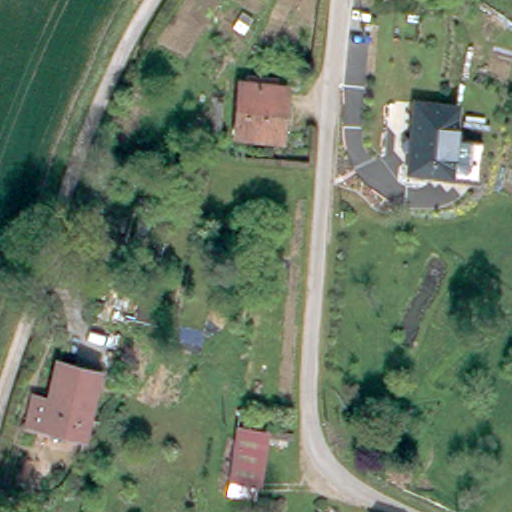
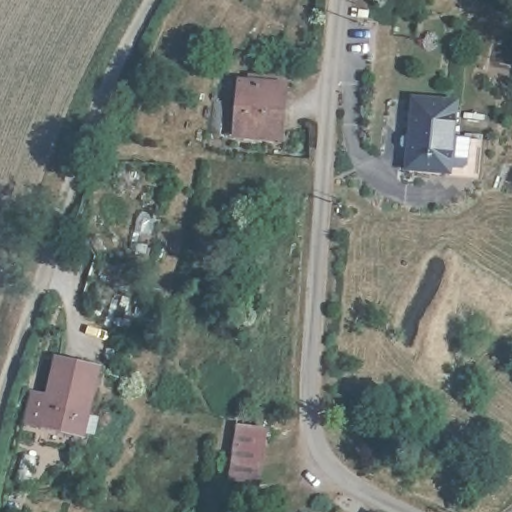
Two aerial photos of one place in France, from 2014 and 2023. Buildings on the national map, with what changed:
unchanged [(484,120),(480,159),(411,152),(416,80),(459,83),(455,117),(484,120)]
unchanged [(236,134),(241,84),(288,87),(283,139),(236,134)]
unchanged [(60,358),(100,368),(83,435),(43,426),(60,358)]
unchanged [(245,421),(270,424),(260,494),(236,491),(245,421)]

